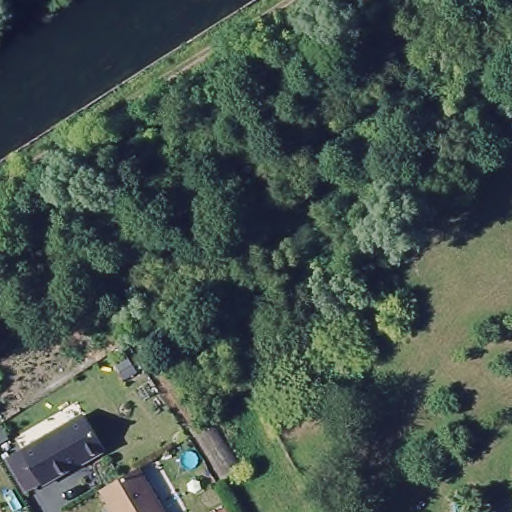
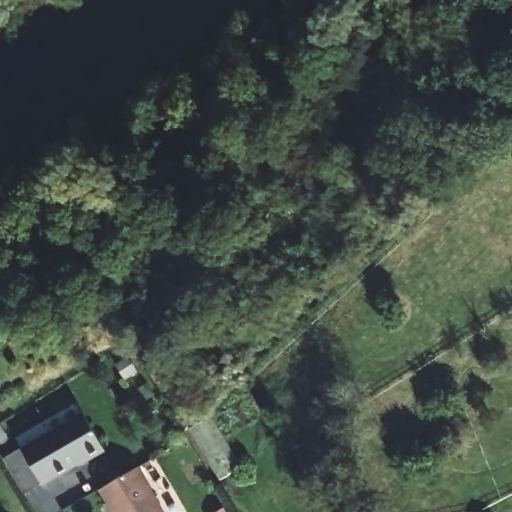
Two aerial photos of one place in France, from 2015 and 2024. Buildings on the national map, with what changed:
unchanged [(20,451),(84,414),(104,448),(40,485),(20,451)]
unchanged [(166,512),(116,512),(104,492),(141,470),(166,512)]

